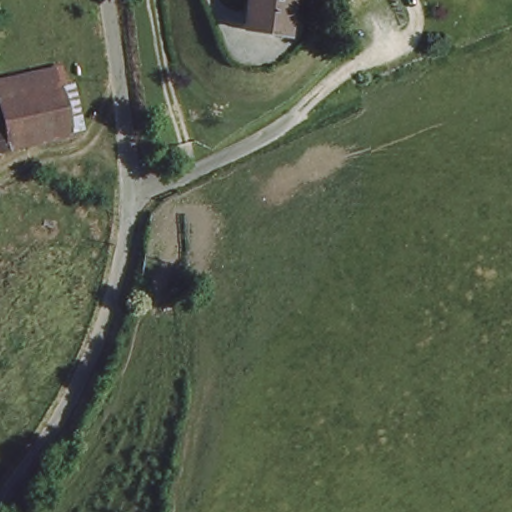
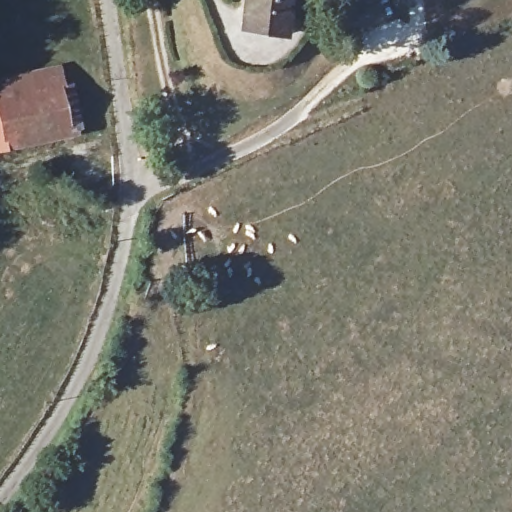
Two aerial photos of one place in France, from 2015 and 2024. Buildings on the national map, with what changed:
unchanged [(243,23),(247,0),(288,0),(282,30),(243,23)]
unchanged [(5,142),(0,109),(0,96),(54,87),(61,131),(5,142)]

